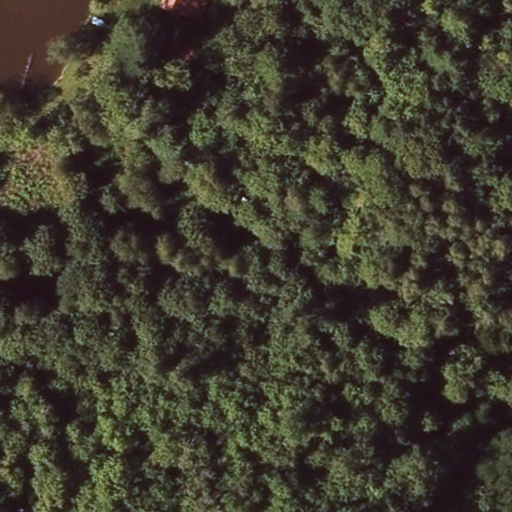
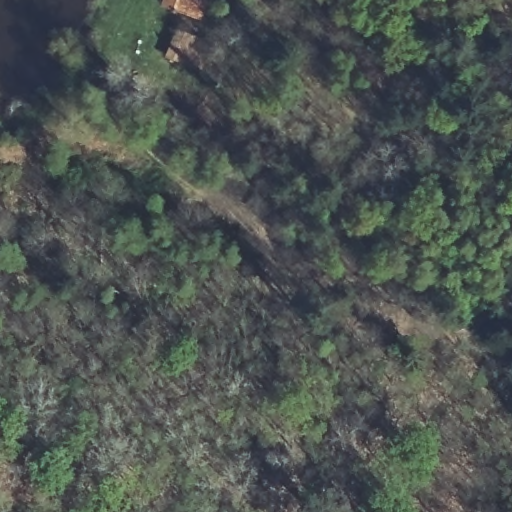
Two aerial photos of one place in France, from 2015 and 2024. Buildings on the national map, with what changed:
unchanged [(189,17),(168,8),(170,0),(195,0),(189,17)]

